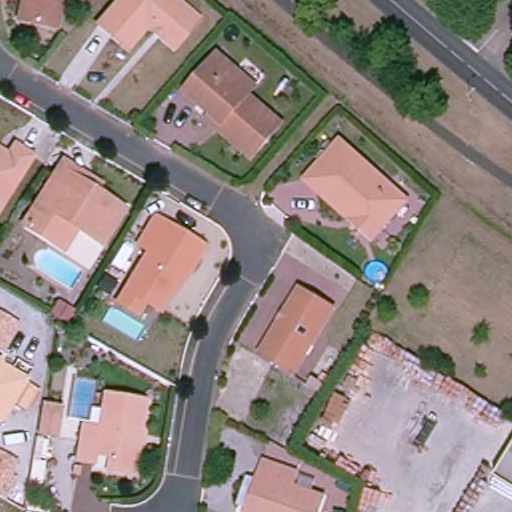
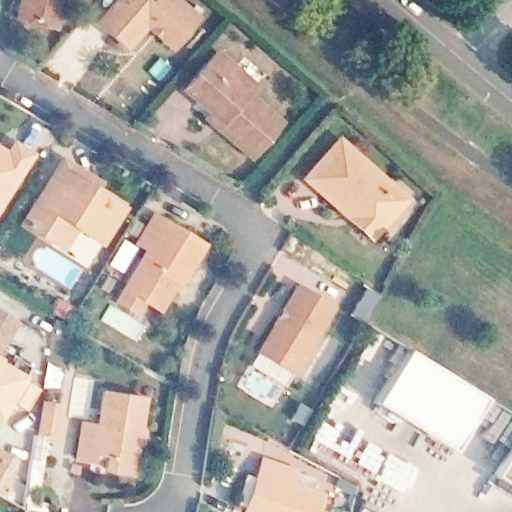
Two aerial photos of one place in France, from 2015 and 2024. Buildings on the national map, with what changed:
unchanged [(18,18),(22,0),(61,0),(55,26),(18,18)]
unchanged [(94,24),(115,0),(163,0),(191,24),(169,48),(156,36),(150,31),(143,25),(133,36),(123,49),(107,35),(94,24)]
unchanged [(206,120),(179,96),(213,58),(232,75),(251,92),(244,101),(276,129),(246,164),(213,135),(202,125),(206,120)]
unchanged [(10,156),(16,145),(34,156),(0,212),(0,150),(10,156)]
unchanged [(352,223),(305,187),(337,145),(408,200),(382,234),(376,242),(352,223)]
unchanged [(44,240),(18,224),(55,162),(72,172),(68,179),(115,207),(95,241),(69,226),(57,247),(44,240)]
unchanged [(110,307),(118,295),(143,256),(133,249),(150,222),(199,253),(177,288),(173,295),(168,292),(153,316),(137,307),(129,319),(110,307)]
unchanged [(282,368),(258,354),(298,288),(332,308),(300,362),(292,375),(282,368)]
unchanged [(21,316),(2,353),(0,351),(0,304),(21,316)]
unchanged [(52,314),(58,304),(69,311),(63,321),(52,314)]
new [(373,402),(407,350),(483,399),(451,450),(373,402)]
unchanged [(29,411),(11,400),(0,415),(0,363),(23,376),(42,389),(29,411)]
unchanged [(139,441),(135,441),(130,471),(103,467),(105,452),(92,450),(90,459),(75,456),(81,422),(96,424),(101,390),(142,397),(137,428),(141,429),(139,441)]
unchanged [(58,409),(53,439),(37,436),(42,410),(42,407),(58,409)]
unchanged [(512,445),(512,490),(492,478),(512,445)]
unchanged [(13,474),(18,478),(2,503),(0,502),(0,451),(18,461),(13,474)]
unchanged [(241,511),(260,462),(293,475),(287,489),(317,500),(313,512),(240,512),(241,511)]

